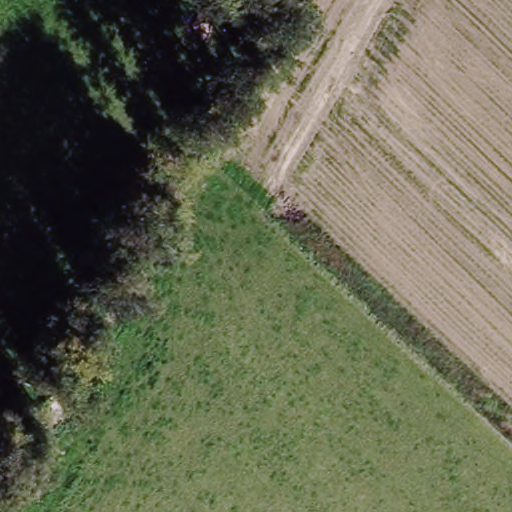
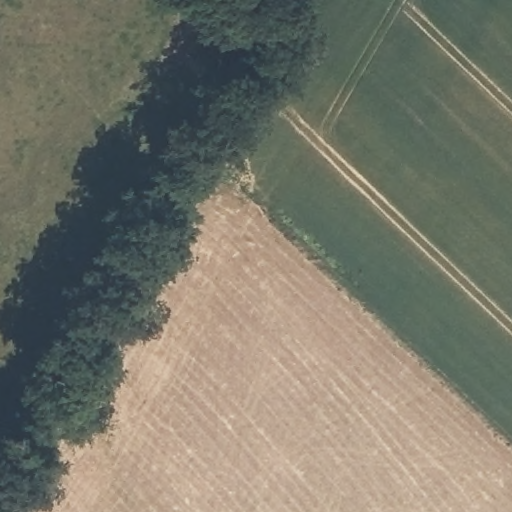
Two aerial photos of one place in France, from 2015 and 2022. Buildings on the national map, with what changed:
[]

